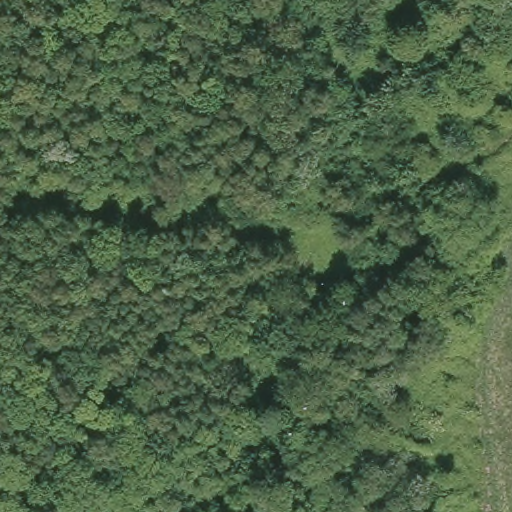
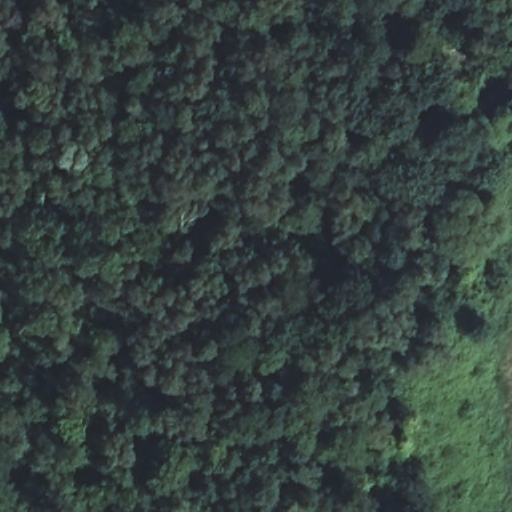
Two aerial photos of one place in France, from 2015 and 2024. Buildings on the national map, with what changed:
unchanged [(464,21),(465,0),(512,0),(512,21),(464,21)]

